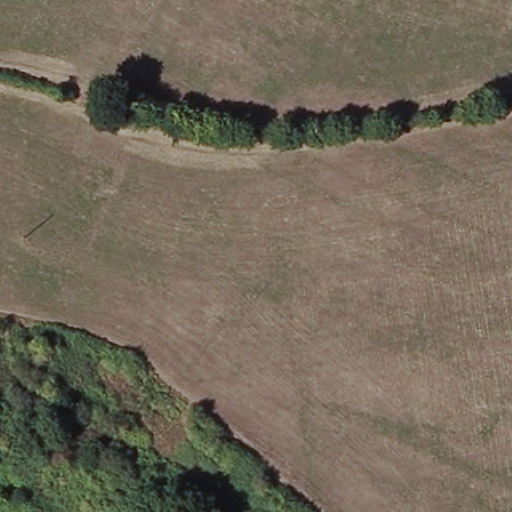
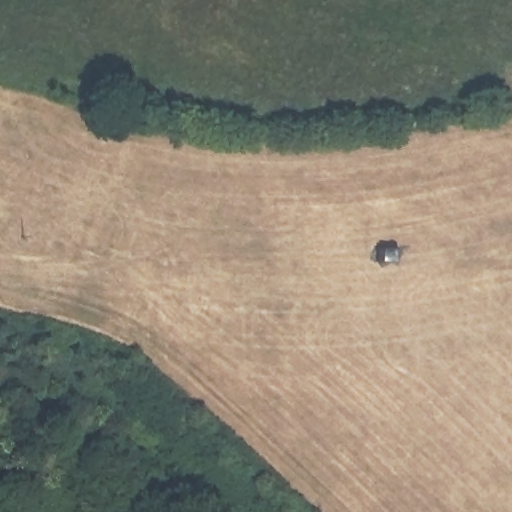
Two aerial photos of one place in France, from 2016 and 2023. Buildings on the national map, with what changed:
[]

